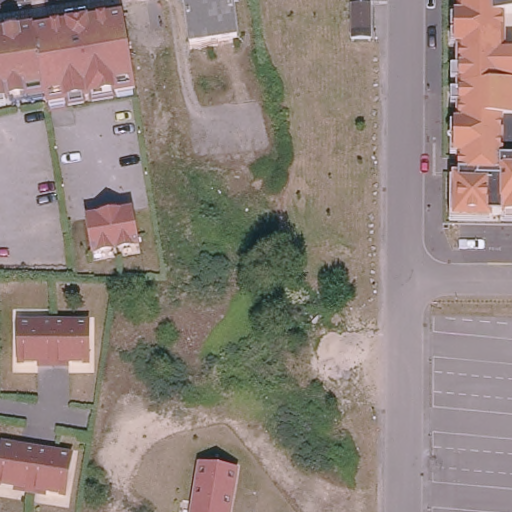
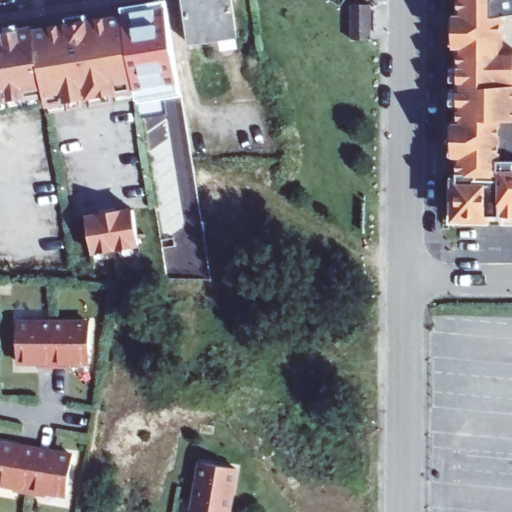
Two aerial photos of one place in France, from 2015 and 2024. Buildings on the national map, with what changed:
unchanged [(233,34),(187,40),(180,0),(227,0),(233,34)]
unchanged [(490,214),(490,221),(454,220),(453,182),(458,182),(459,159),(454,159),(454,122),(459,122),(461,50),(454,50),(453,14),(459,14),(459,0),(512,0),(512,14),(504,15),(503,51),(512,52),(512,215),(490,214)]
new [(182,90),(137,96),(135,85),(128,37),(123,11),(121,7),(166,2),(182,90)]
unchanged [(353,38),(353,5),(373,5),(373,39),(353,38)]
unchanged [(78,19),(123,11),(128,37),(135,85),(89,93),(45,100),(44,96),(43,90),(40,67),(33,26),(78,19)]
unchanged [(25,94),(25,90),(5,94),(5,96),(0,97),(0,31),(5,30),(16,29),(33,26),(40,67),(43,90),(25,94)]
unchanged [(108,215),(132,211),(138,246),(113,250),(90,254),(84,219),(108,215)]
unchanged [(25,316),(96,317),(95,365),(75,365),(76,368),(44,368),(44,365),(25,365),(25,316)]
unchanged [(49,492),(18,486),(18,482),(0,479),(6,442),(76,453),(69,491),(50,488),(49,492)]
unchanged [(239,469),(232,512),(190,512),(198,462),(239,469)]

